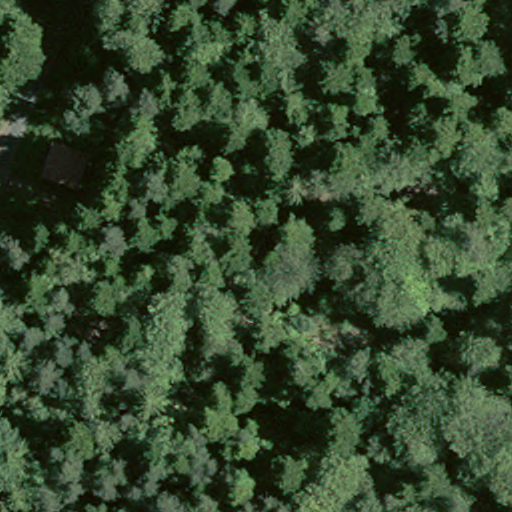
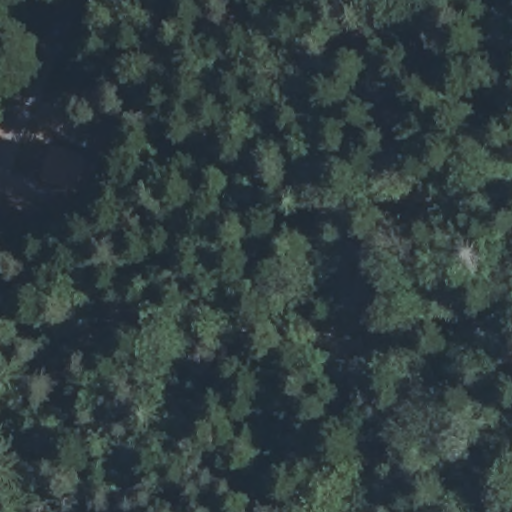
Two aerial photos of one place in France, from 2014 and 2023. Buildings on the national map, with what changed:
unchanged [(40,175),(55,140),(95,155),(80,190),(40,175)]

